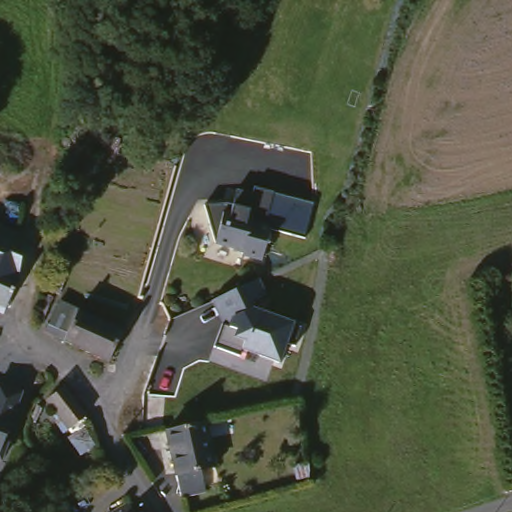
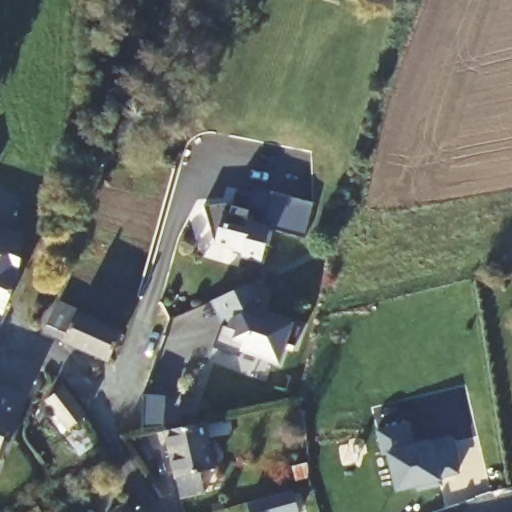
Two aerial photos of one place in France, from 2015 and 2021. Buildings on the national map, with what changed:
unchanged [(249,249),(250,244),(222,237),(211,198),(233,197),(239,199),(244,183),(259,188),(261,181),(313,198),(295,231),(280,225),(268,254),(249,249)]
unchanged [(11,302),(0,297),(0,246),(16,252),(8,266),(23,273),(11,302)]
unchanged [(294,347),(288,344),(281,362),(243,351),(246,344),(233,340),(234,332),(220,326),(210,301),(259,278),(267,292),(253,299),(255,308),(300,325),(294,347)]
unchanged [(114,358),(77,334),(73,333),(51,323),(68,293),(87,304),(130,327),(114,358)]
unchanged [(9,382),(28,394),(26,403),(3,439),(6,442),(0,451),(0,396),(9,382)]
unchanged [(91,410),(71,428),(47,399),(63,383),(91,410)]
unchanged [(188,493),(182,471),(170,428),(211,415),(222,460),(207,464),(211,486),(188,493)]
new [(410,423),(415,445),(432,441),(451,437),(460,475),(441,478),(441,481),(442,486),(418,492),(418,486),(396,491),(387,453),(382,455),(377,431),(410,423)]
demolished [(249,440),(256,463),(242,466),(236,445),(249,440)]
new [(248,504),(293,491),(299,512),(249,512),(248,504)]
unchanged [(33,502),(38,512),(17,512),(33,502)]
unchanged [(139,502),(144,512),(124,512),(139,502)]
unchanged [(151,511),(151,512),(150,512),(151,511)]

